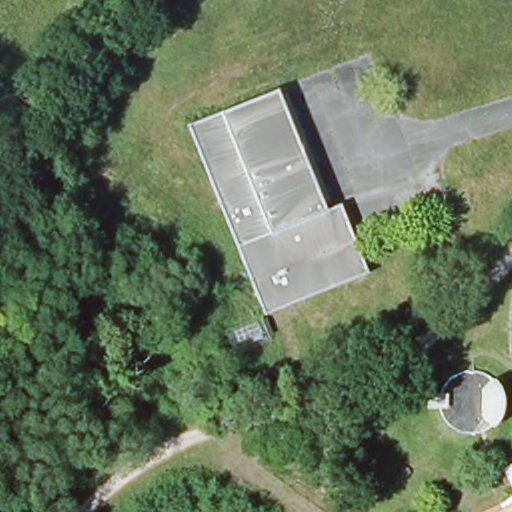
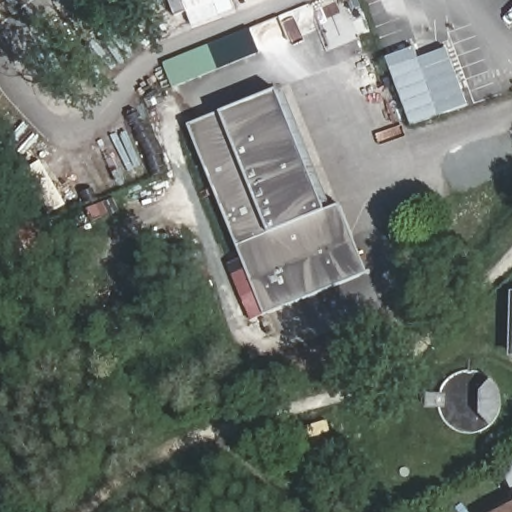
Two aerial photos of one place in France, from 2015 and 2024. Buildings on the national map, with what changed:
new [(234,9),(192,26),(185,8),(173,13),(168,0),(231,0),(234,9)]
new [(172,88),(163,64),(248,29),(258,52),(172,88)]
new [(418,59),(446,48),(467,105),(411,127),(385,58),(414,47),(418,59)]
unchanged [(276,89),(343,253),(357,247),(368,274),(264,316),(188,125),(276,89)]
unchanged [(262,372),(278,367),(281,376),(266,382),(262,372)]
unchanged [(503,469),(512,465),(512,488),(503,469)]
unchanged [(499,512),(512,505),(512,512),(499,512)]

